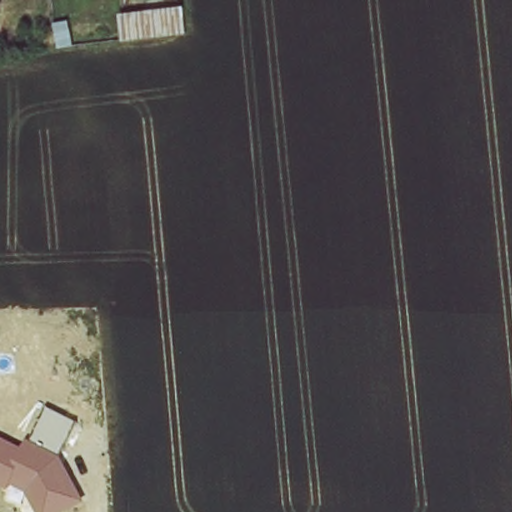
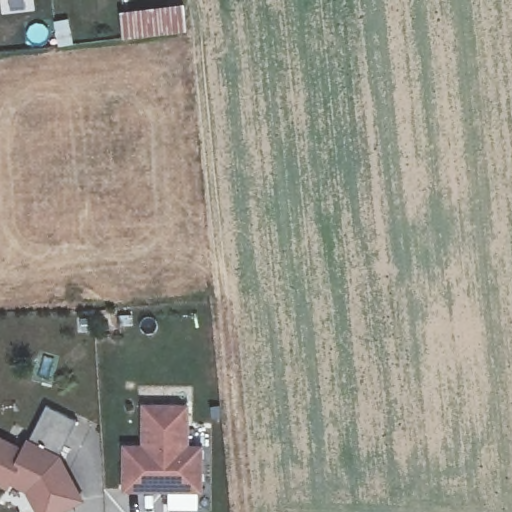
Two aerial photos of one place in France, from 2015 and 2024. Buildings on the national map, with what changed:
new [(183,6),(186,32),(122,39),(120,12),(183,6)]
unchanged [(59,30),(70,27),(72,42),(62,45),(59,30)]
new [(121,491),(122,445),(141,445),(142,403),(191,403),(190,445),(202,445),(200,493),(121,491)]
unchanged [(27,440),(33,443),(48,407),(78,420),(62,457),(87,501),(69,512),(38,512),(27,493),(12,485),(9,490),(0,485),(0,436),(23,447),(27,440)]

